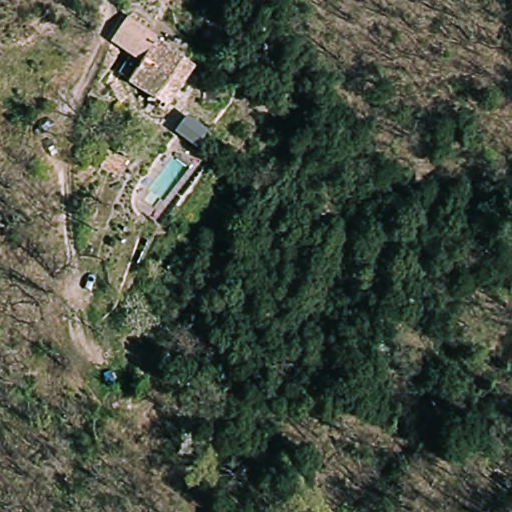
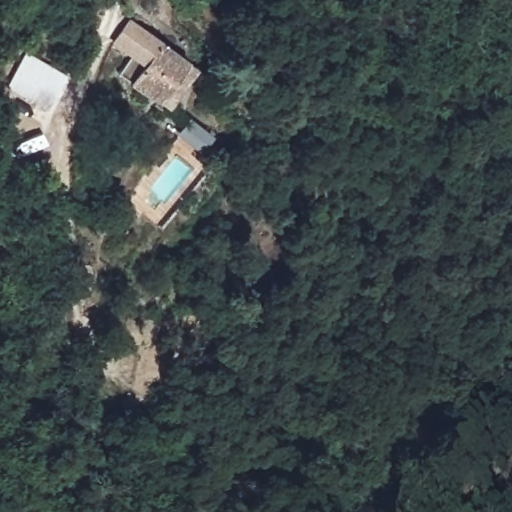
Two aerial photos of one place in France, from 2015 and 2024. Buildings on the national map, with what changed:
unchanged [(150,63),(116,41),(128,21),(200,66),(177,97),(171,91),(161,103),(133,85),(150,63)]
new [(28,54),(66,75),(45,111),(8,91),(28,54)]

